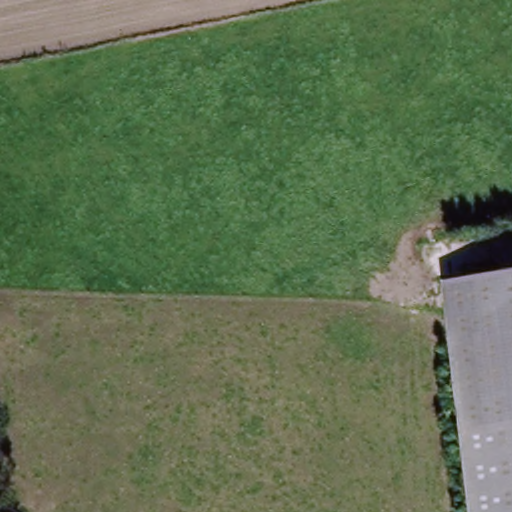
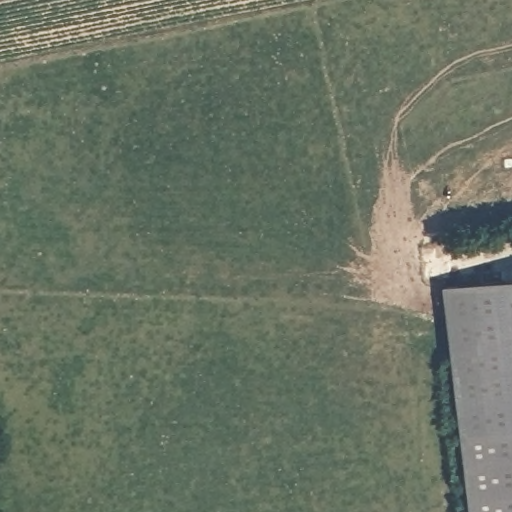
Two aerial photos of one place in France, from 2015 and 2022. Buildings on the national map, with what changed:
unchanged [(512,512),(475,512),(430,309),(512,291),(512,512)]

